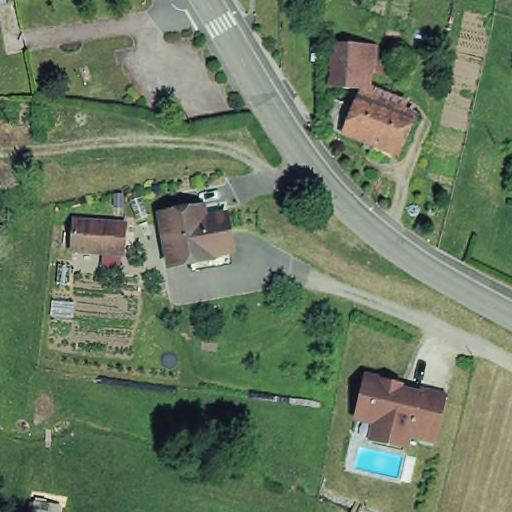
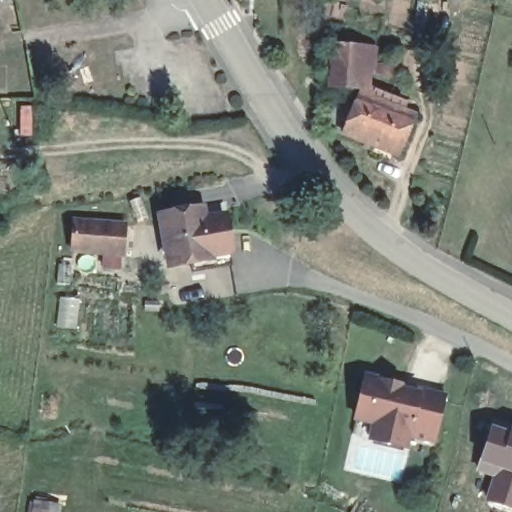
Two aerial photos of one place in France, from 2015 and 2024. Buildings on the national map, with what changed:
unchanged [(336,137),(322,132),(332,108),(346,113),(352,97),(354,93),(324,91),(327,46),(359,49),(359,55),(370,56),(369,62),(393,74),(391,81),(367,70),(367,69),(357,67),(354,91),(369,97),(370,95),(399,106),(395,115),(409,120),(393,160),(372,152),(370,157),(364,154),(365,149),(336,137)]
unchanged [(230,258),(195,263),(194,253),(173,256),(167,210),(197,205),(209,203),(210,212),(229,209),(234,246),(235,257),(230,258)]
unchanged [(80,221),(130,225),(127,255),(77,250),(80,221)]
unchanged [(435,447),(407,439),(405,448),(365,440),(367,424),(354,421),(365,370),(406,380),(404,385),(447,396),(435,447)]
new [(490,424),(508,429),(509,426),(512,427),(512,510),(484,501),(492,478),(475,472),(490,424)]
unchanged [(33,496),(62,499),(61,512),(31,512),(33,496)]

